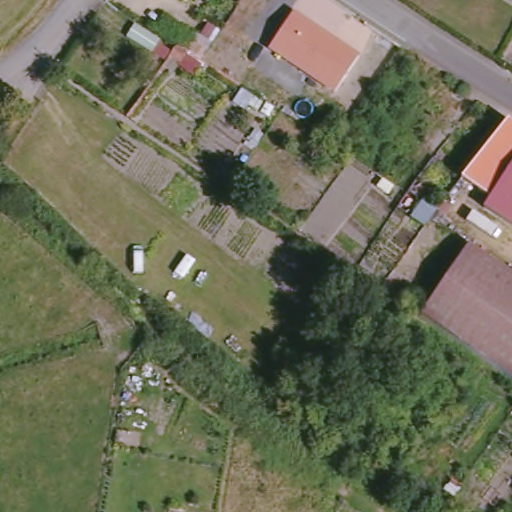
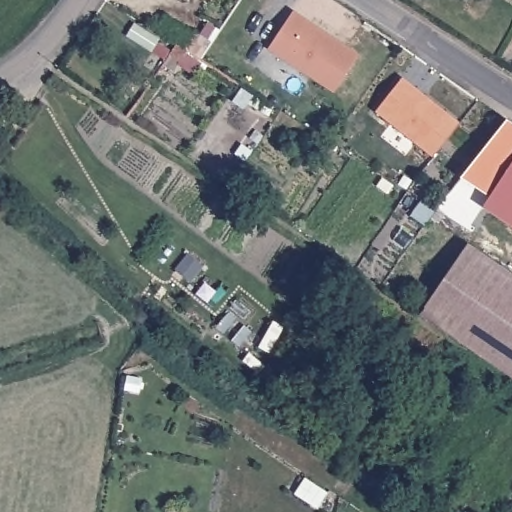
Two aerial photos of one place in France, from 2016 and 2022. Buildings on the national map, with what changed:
unchanged [(296,14),(363,58),(337,96),(270,53),(296,14)]
new [(401,82),(459,125),(436,157),(377,115),(401,82)]
unchanged [(512,120),(512,221),(484,202),(490,193),(461,174),(473,160),(508,117),(512,120)]
unchanged [(512,274),(512,377),(422,317),(470,245),(512,274)]

